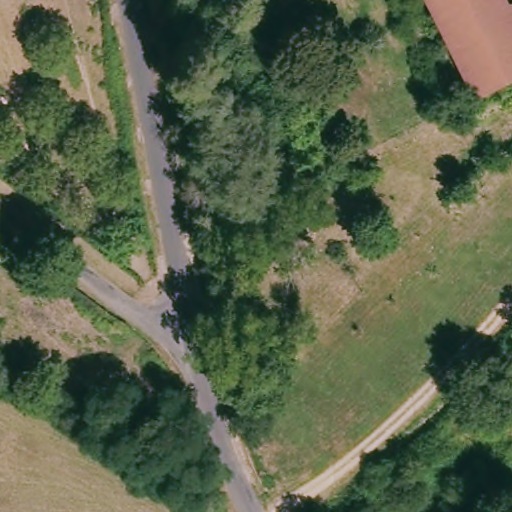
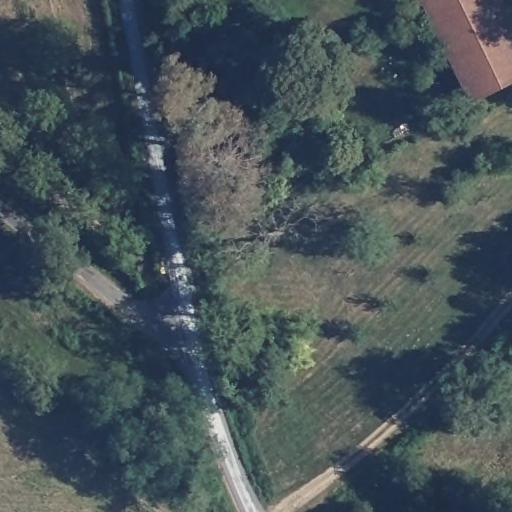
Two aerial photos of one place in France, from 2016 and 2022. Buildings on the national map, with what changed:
unchanged [(491,0),(512,42),(512,76),(466,96),(419,0),(491,0)]

